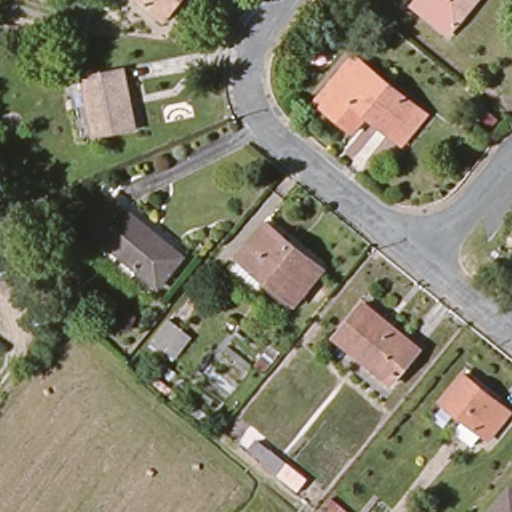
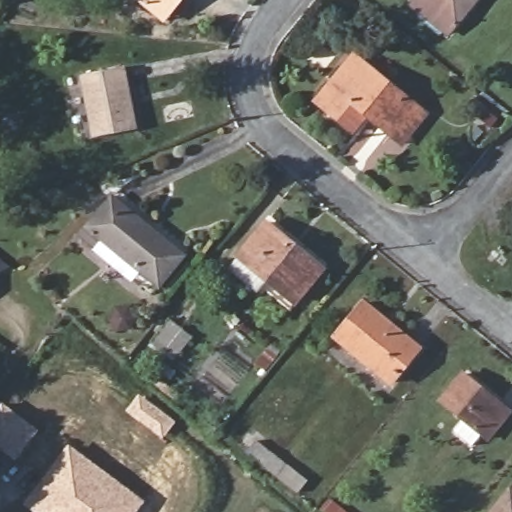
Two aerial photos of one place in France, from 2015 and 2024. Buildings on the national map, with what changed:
unchanged [(154,0),(189,0),(175,16),(154,0)]
unchanged [(428,0),(485,0),(460,29),(428,0)]
unchanged [(396,123),(363,98),(343,123),(320,103),(359,56),(414,99),(396,123)]
unchanged [(101,140),(86,77),(130,68),(144,130),(101,140)]
unchanged [(97,243),(120,215),(187,265),(162,296),(97,243)]
unchanged [(301,304),(241,256),(265,227),(323,276),(301,304)]
unchanged [(344,334),(367,305),(423,347),(399,378),(344,334)]
unchanged [(490,442),(442,406),(464,378),(511,415),(490,442)]
new [(5,405),(38,431),(16,461),(0,449),(0,411),(5,405)]
new [(69,444),(146,502),(138,512),(33,512),(23,505),(69,444)]
unchanged [(512,512),(499,512),(512,496),(512,512)]
new [(323,512),(321,511),(329,500),(346,512),(323,512)]

